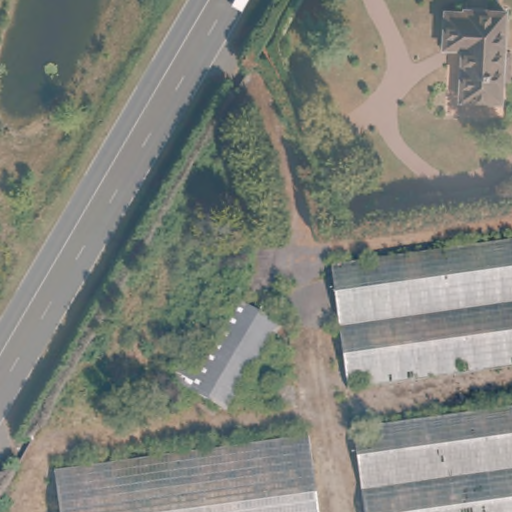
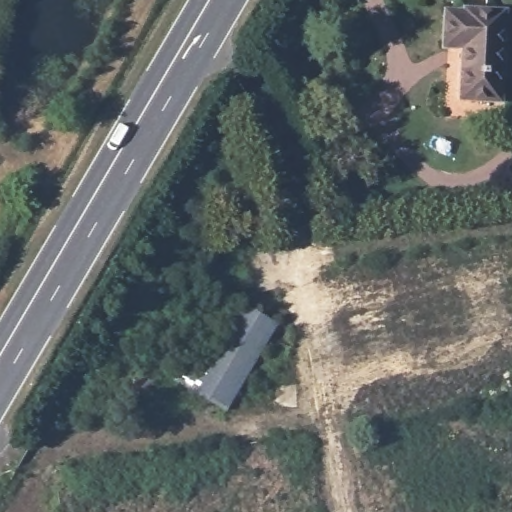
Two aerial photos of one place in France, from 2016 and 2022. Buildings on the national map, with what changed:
unchanged [(508,5),(507,95),(469,94),(471,42),(453,41),(455,9),(475,10),(475,4),(508,5)]
demolished [(345,387),(328,263),(512,239),(512,364),(345,387)]
unchanged [(247,301),(276,319),(226,406),(196,389),(247,301)]
demolished [(361,512),(349,425),(512,402),(512,512),(361,512)]
demolished [(58,512),(52,470),(310,434),(321,512),(58,512)]

